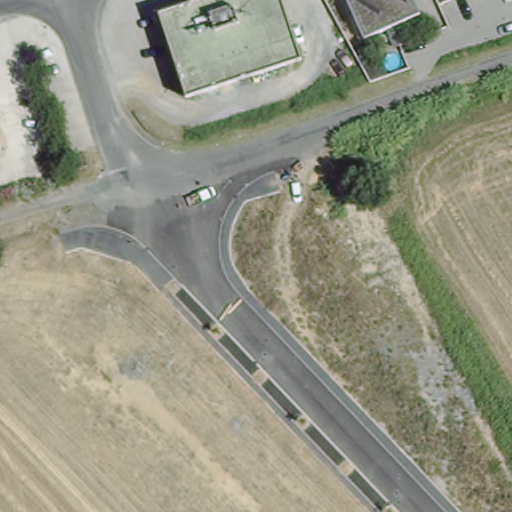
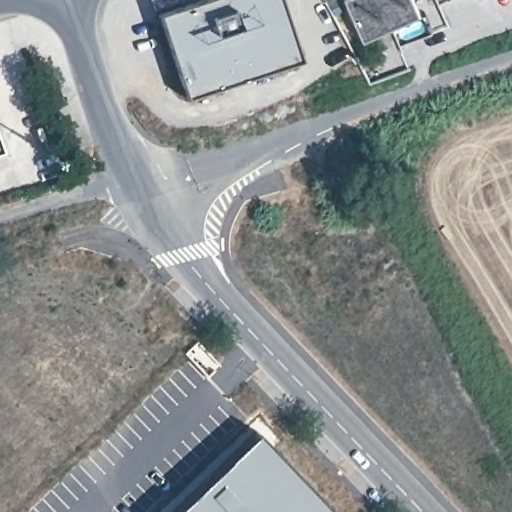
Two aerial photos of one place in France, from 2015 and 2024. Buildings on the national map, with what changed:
unchanged [(200,0),(278,0),(297,63),(180,99),(155,14),(200,0)]
unchanged [(419,16),(365,35),(355,0),(414,0),(419,16)]
new [(333,512),(174,512),(257,432),(333,512)]

